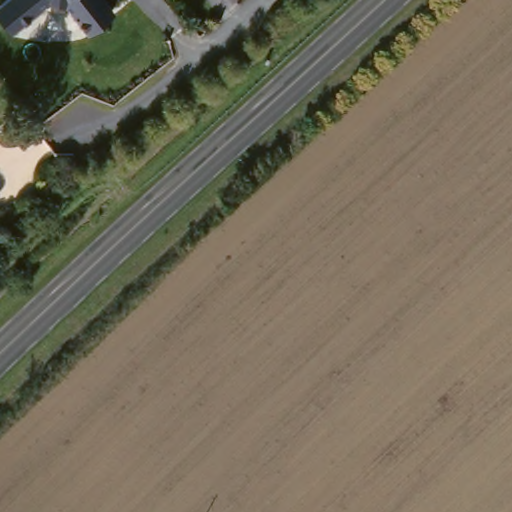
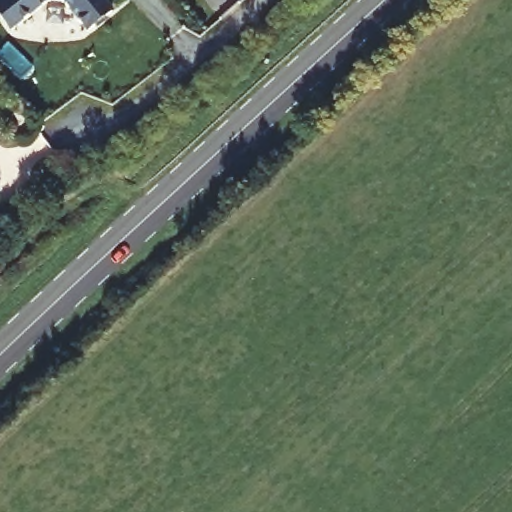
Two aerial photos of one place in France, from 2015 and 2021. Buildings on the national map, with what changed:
unchanged [(111,11),(86,31),(64,3),(47,1),(12,29),(0,15),(0,3),(4,0),(102,0),(111,11)]

